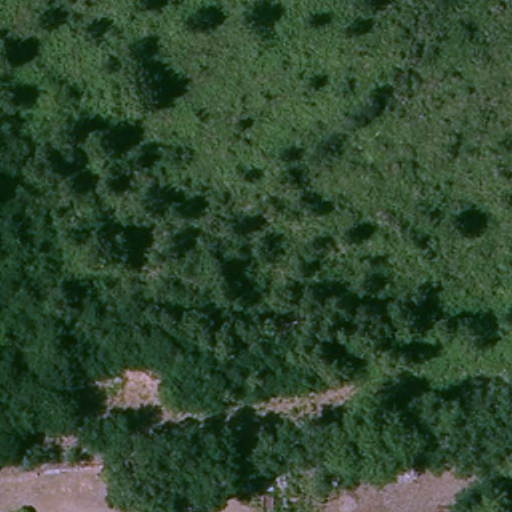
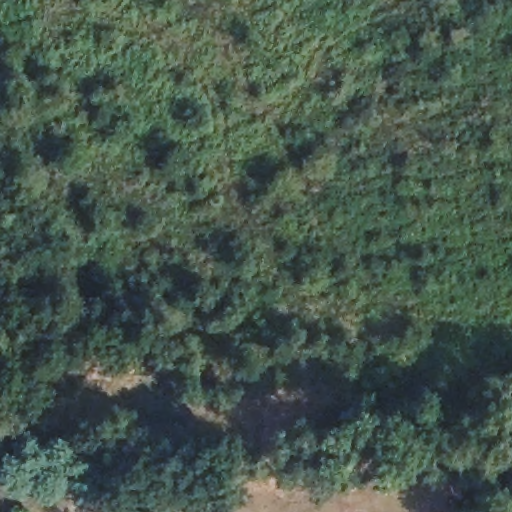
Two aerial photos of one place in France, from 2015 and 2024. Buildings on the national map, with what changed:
[]

